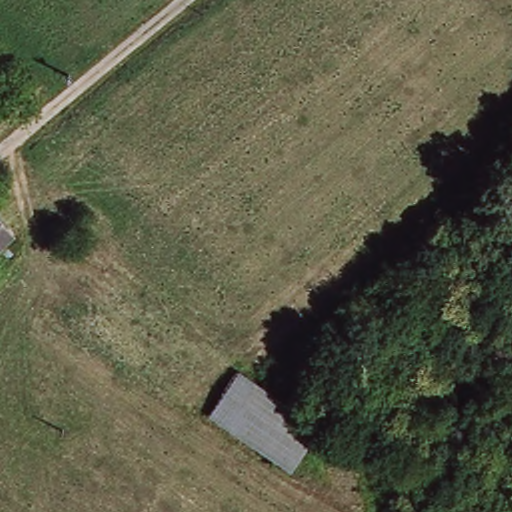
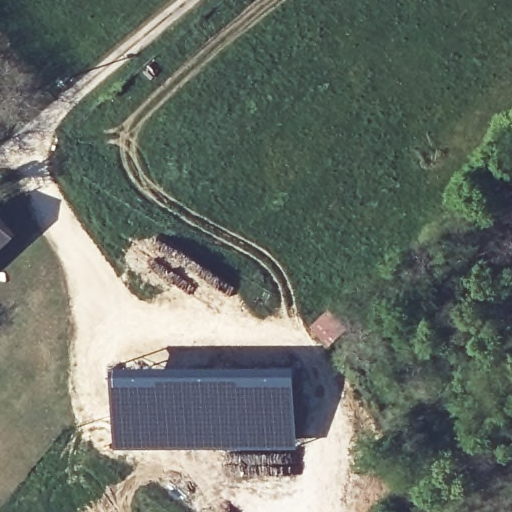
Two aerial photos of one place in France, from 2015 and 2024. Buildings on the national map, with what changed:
unchanged [(12,199),(35,225),(0,256),(0,210),(12,199)]
new [(330,307),(350,327),(332,343),(313,323),(330,307)]
new [(120,365),(192,369),(252,368),(252,365),(299,363),(300,447),(215,445),(117,446),(120,365)]
demolished [(234,368),(315,428),(288,465),(212,409),(234,368)]

